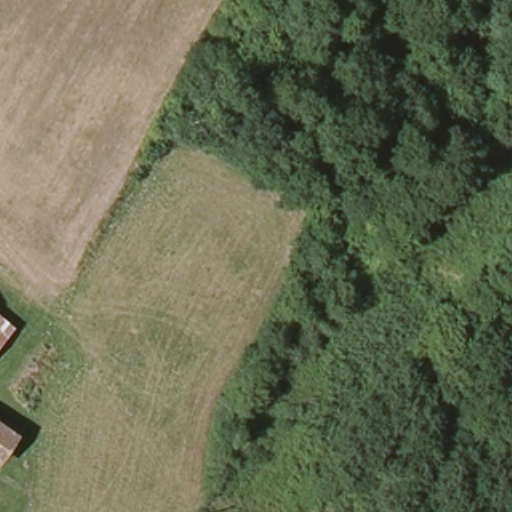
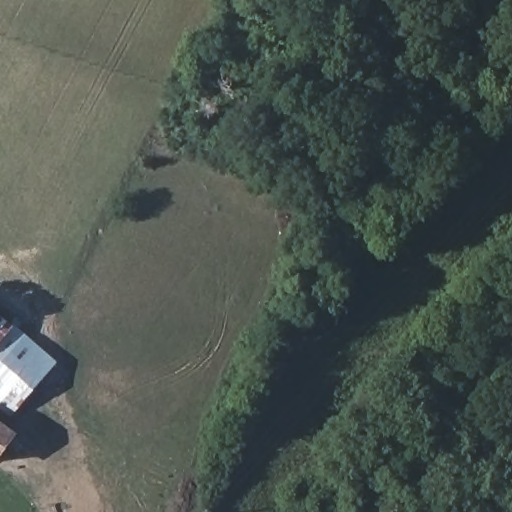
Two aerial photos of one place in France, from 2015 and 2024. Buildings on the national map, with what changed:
unchanged [(0,321),(16,335),(0,354),(0,321)]
new [(54,367),(10,419),(0,410),(0,354),(16,335),(54,367)]
unchanged [(0,462),(0,432),(15,444),(0,462)]

